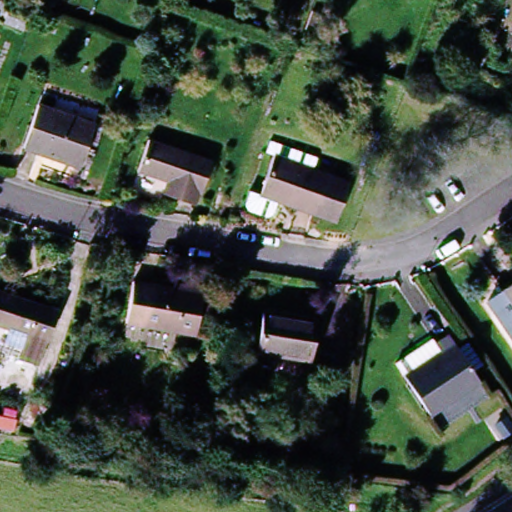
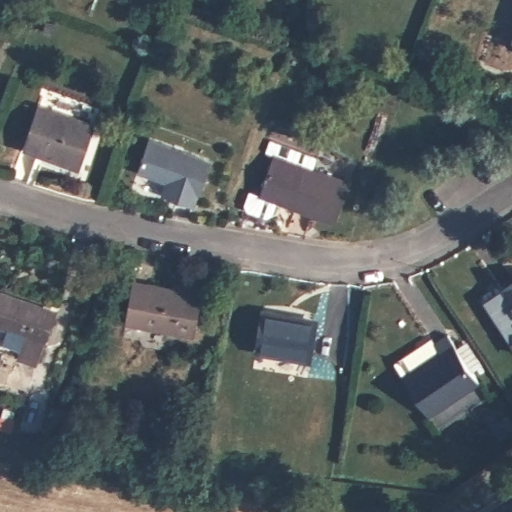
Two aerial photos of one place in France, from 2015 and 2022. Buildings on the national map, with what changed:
unchanged [(78,166),(21,148),(37,105),(93,122),(78,166)]
unchanged [(196,204),(165,194),(169,183),(140,174),(152,140),(211,159),(196,204)]
unchanged [(352,183),(337,225),(258,198),(275,156),(352,183)]
unchanged [(139,339),(142,323),(127,321),(135,277),(175,284),(176,279),(204,284),(195,331),(178,328),(176,343),(166,349),(142,345),(139,339)]
unchanged [(512,278),(512,312),(497,287),(512,278)]
unchanged [(44,362),(18,355),(25,332),(0,325),(0,295),(58,312),(44,362)]
unchanged [(320,323),(312,361),(253,350),(263,312),(320,323)]
unchanged [(479,383),(430,417),(392,361),(417,344),(421,350),(447,333),(479,383)]

